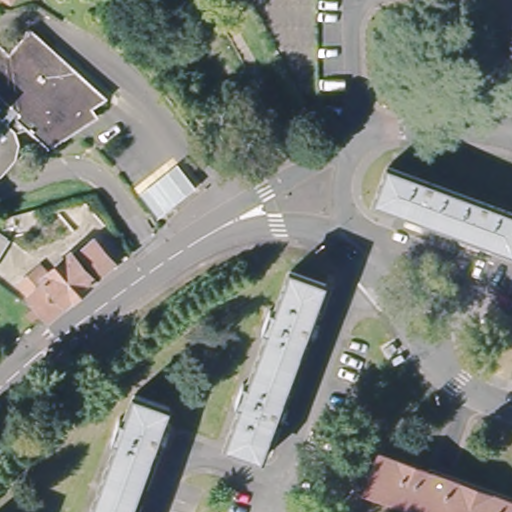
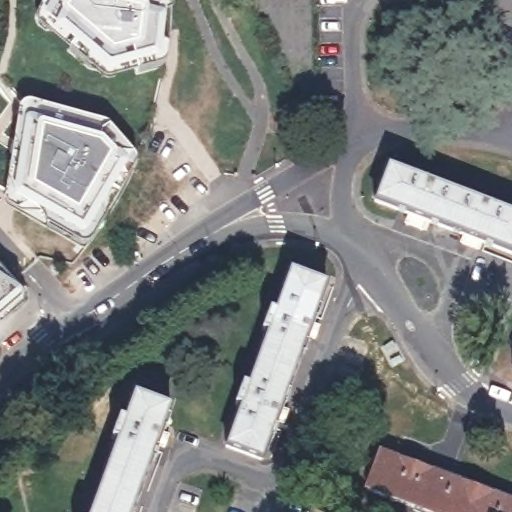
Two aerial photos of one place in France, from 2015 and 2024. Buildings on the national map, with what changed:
new [(58,0),(95,0),(143,63),(109,72),(47,18),(58,0)]
new [(165,5),(159,59),(143,63),(95,0),(144,0),(165,5)]
demolished [(24,129),(10,135),(15,148),(12,163),(0,175),(0,47),(9,54),(29,32),(105,98),(85,112),(65,125),(73,133),(47,150),(24,129)]
new [(30,113),(101,135),(127,163),(101,205),(94,195),(39,210),(16,198),(30,113)]
unchanged [(388,166),(512,211),(512,252),(375,201),(388,166)]
new [(94,195),(101,205),(84,235),(39,210),(94,195)]
demolished [(115,261),(96,277),(97,279),(72,300),(71,299),(52,315),(50,314),(23,281),(44,264),(51,272),(74,253),(76,256),(96,239),(115,261)]
unchanged [(250,383),(270,331),(264,329),(271,308),(277,310),(292,270),(326,283),(262,458),(227,445),(242,406),(236,404),(245,381),(250,383)]
new [(0,311),(0,276),(17,295),(0,311)]
unchanged [(114,437),(121,416),(126,418),(136,393),(170,406),(132,512),(93,512),(119,439),(114,437)]
unchanged [(425,512),(366,490),(380,454),(512,504),(512,512),(425,512)]

